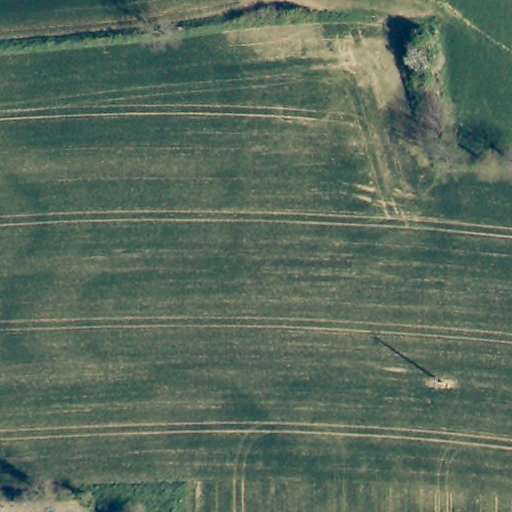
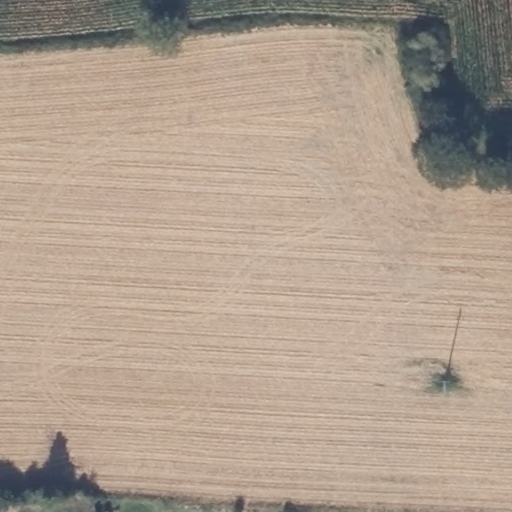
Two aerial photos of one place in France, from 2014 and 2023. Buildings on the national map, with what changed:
unchanged [(3,512),(0,512),(0,506),(2,506),(3,512)]

